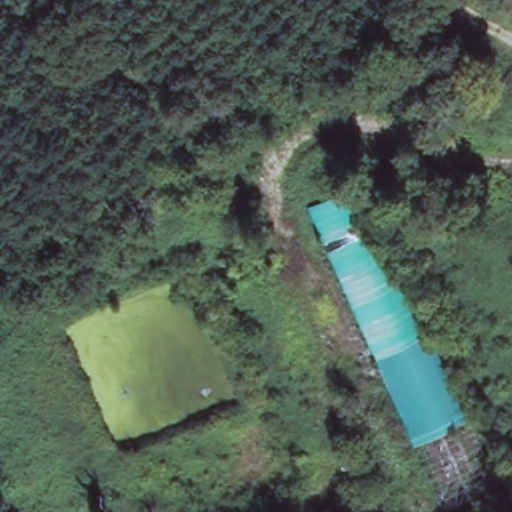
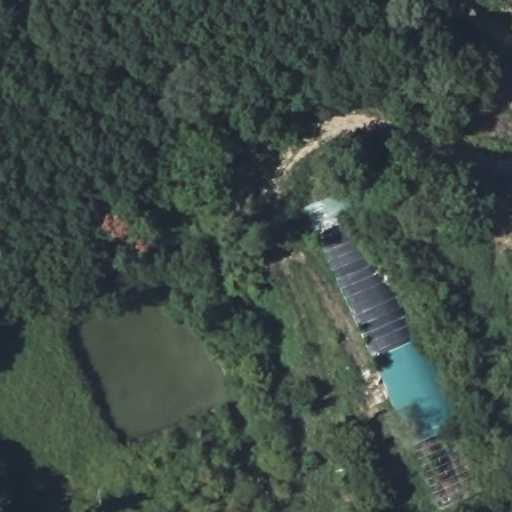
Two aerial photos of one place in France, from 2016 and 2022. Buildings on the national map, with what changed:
unchanged [(361,184),(495,484),(441,508),(309,204),(361,184)]

